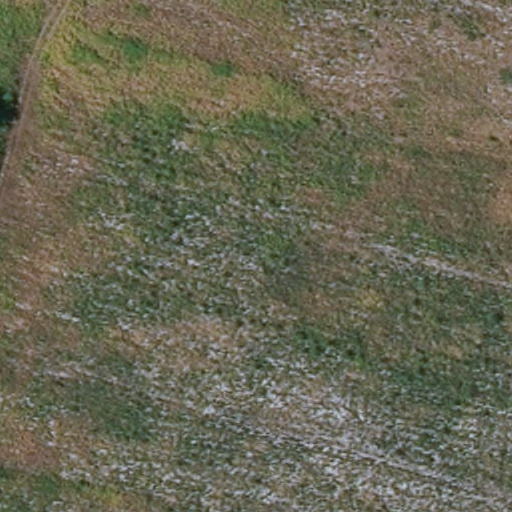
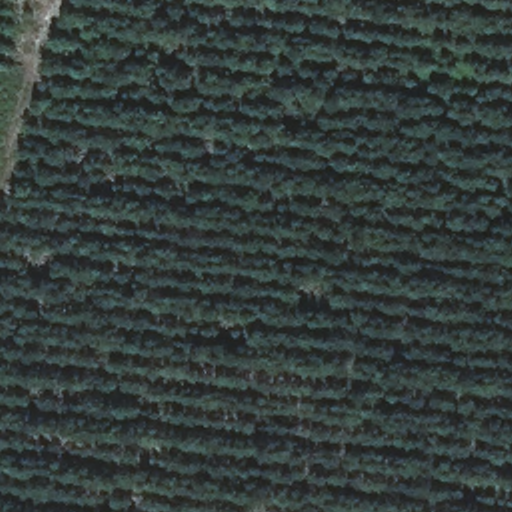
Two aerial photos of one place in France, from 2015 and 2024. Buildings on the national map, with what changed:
[]

